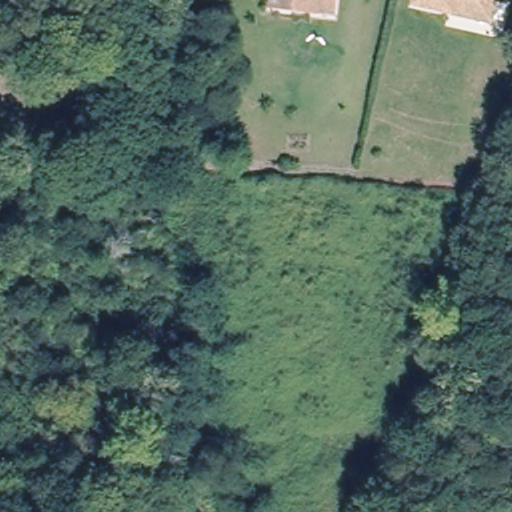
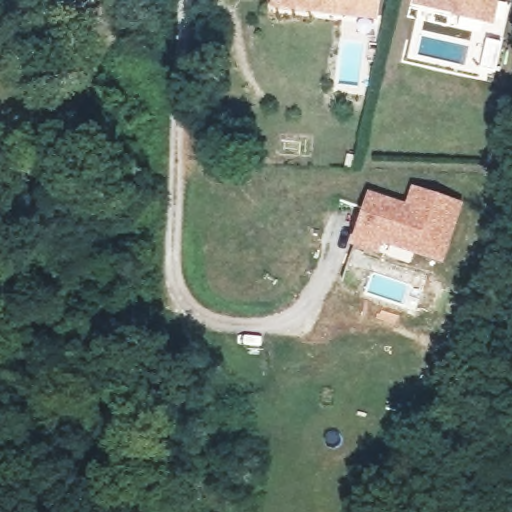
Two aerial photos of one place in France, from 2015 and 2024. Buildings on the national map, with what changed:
demolished [(268,0),(306,0),(305,7),(268,0)]
new [(305,7),(268,0),(306,0),(324,0),(381,0),(378,18),(322,10),(305,7)]
unchanged [(417,4),(418,0),(493,0),(489,19),(417,4)]
new [(405,203),(411,182),(465,200),(443,264),(383,243),(378,255),(348,246),(369,191),(405,203)]

